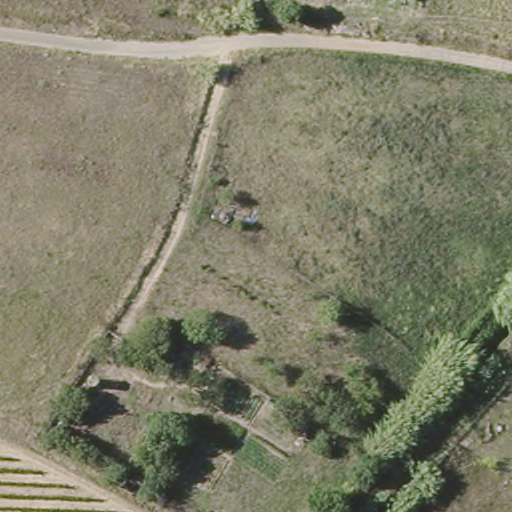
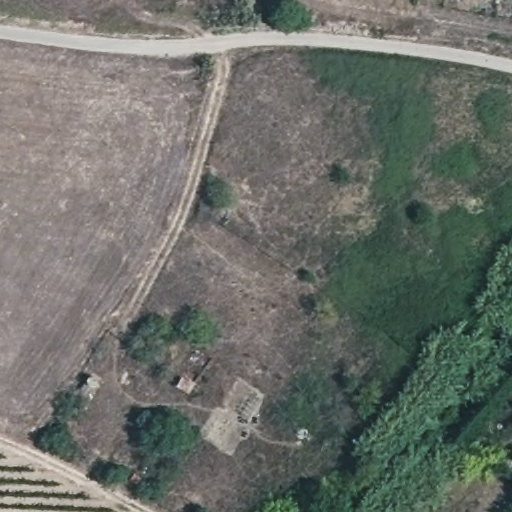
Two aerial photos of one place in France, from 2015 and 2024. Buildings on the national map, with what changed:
[]

